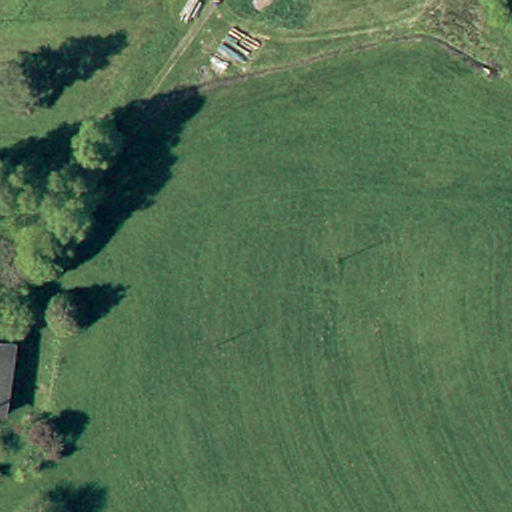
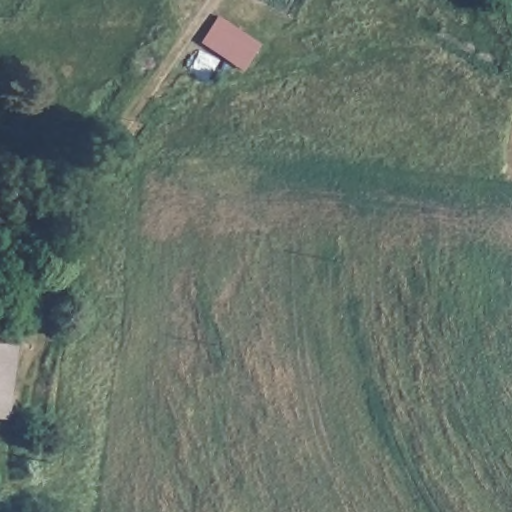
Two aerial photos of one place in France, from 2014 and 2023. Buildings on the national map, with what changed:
new [(263,42),(245,68),(201,41),(219,14),(263,42)]
unchanged [(3,419),(0,419),(0,344),(9,346),(3,419)]

